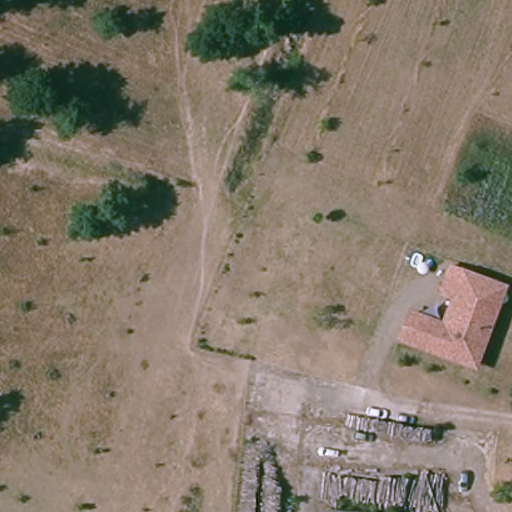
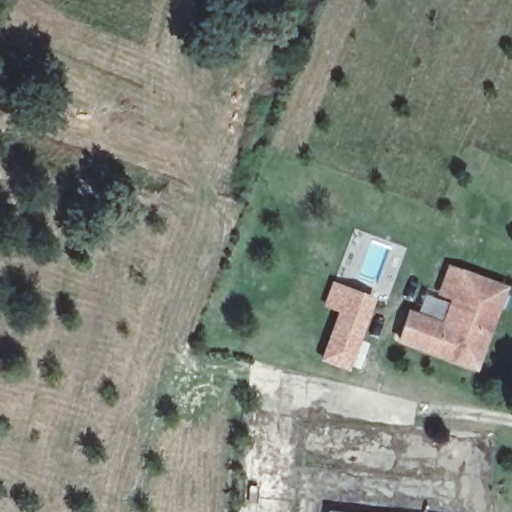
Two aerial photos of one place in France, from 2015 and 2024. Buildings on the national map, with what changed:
unchanged [(475,361),(433,348),(399,338),(407,312),(441,322),(447,325),(449,318),(443,317),(450,293),(449,293),(437,290),(439,281),(444,265),(459,268),(499,280),(493,303),(492,304),(475,361)]
new [(319,359),(337,310),(323,305),(332,280),(376,296),(348,371),(319,359)]

